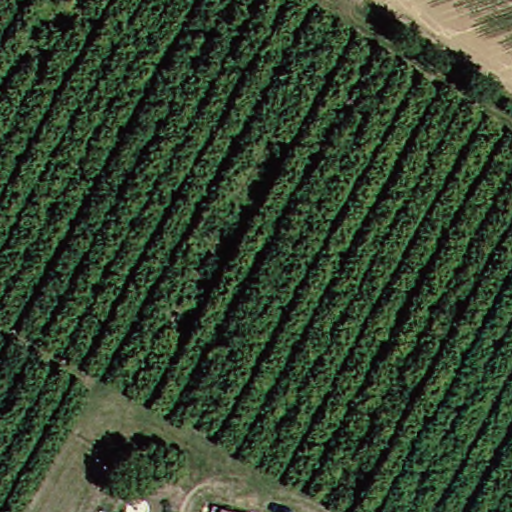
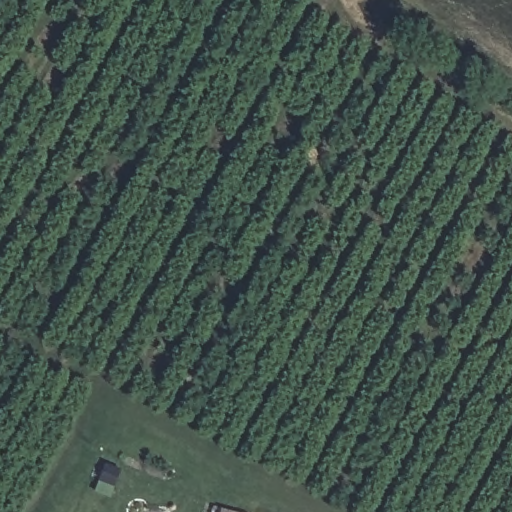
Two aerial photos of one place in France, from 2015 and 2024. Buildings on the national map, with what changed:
unchanged [(207,511),(209,512),(206,512),(207,511)]

